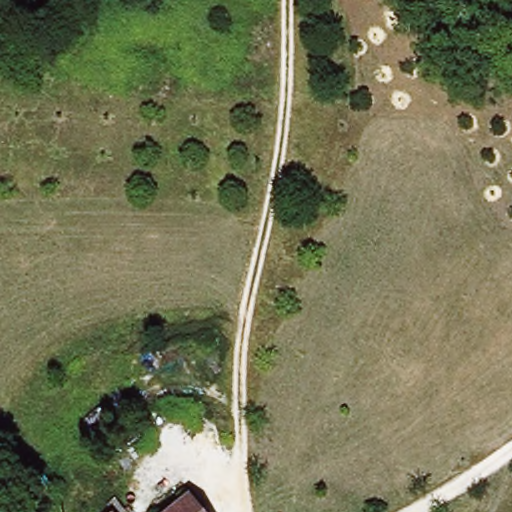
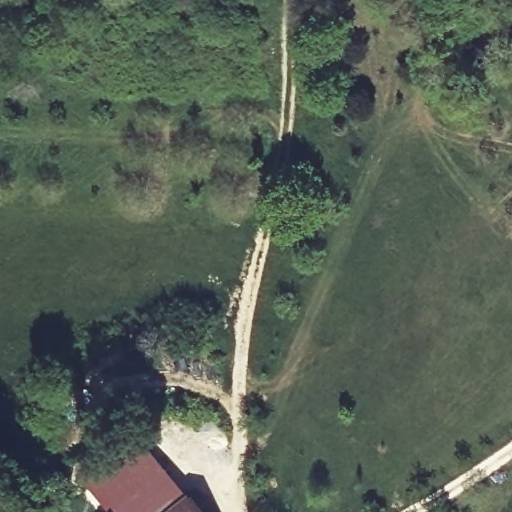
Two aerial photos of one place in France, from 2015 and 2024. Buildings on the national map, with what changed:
new [(92,488),(147,444),(205,512),(111,512),(92,488)]
demolished [(194,497),(208,512),(176,512),(194,497)]

